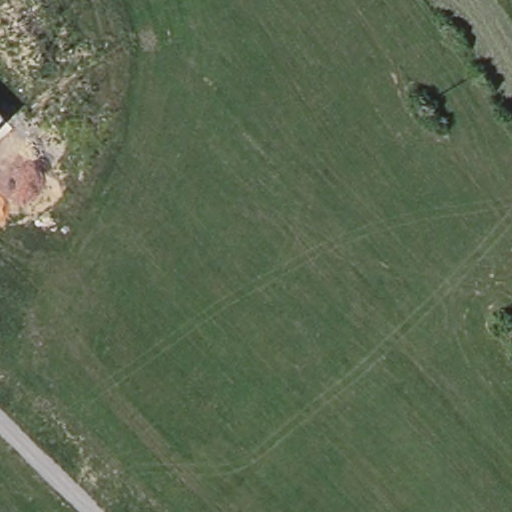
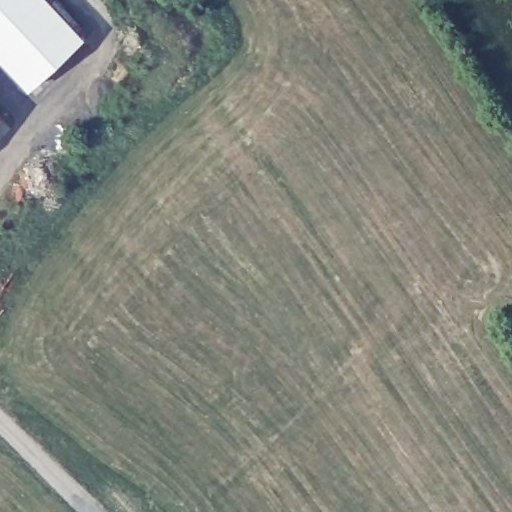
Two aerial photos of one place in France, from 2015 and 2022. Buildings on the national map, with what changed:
new [(50,0),(84,36),(28,89),(0,60),(0,0),(50,0)]
unchanged [(2,116),(0,118),(0,114),(2,116)]

